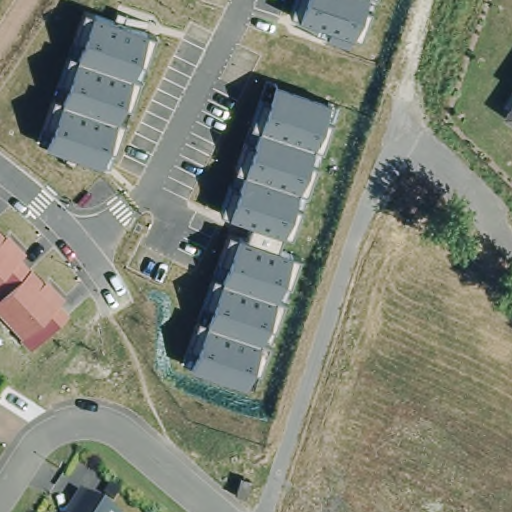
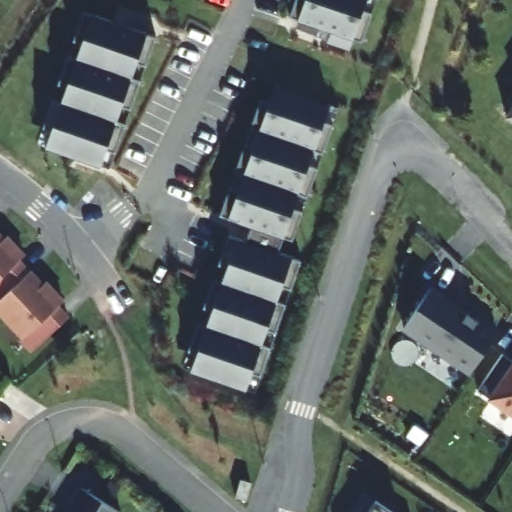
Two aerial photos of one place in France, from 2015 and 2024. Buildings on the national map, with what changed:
unchanged [(289,11),(291,0),(372,0),(360,38),(351,34),(347,46),(327,42),(332,28),(289,11)]
unchanged [(47,142),(51,126),(37,122),(81,8),(153,35),(105,167),(47,142)]
unchanged [(283,235),(277,252),(297,259),(253,388),(190,367),(194,355),(185,352),(224,235),(242,241),(248,222),(217,209),(254,100),(262,103),(269,83),(331,106),(283,235)]
unchanged [(512,111),(512,121),(507,117),(512,111)]
unchanged [(28,349),(0,315),(0,233),(6,229),(27,254),(19,261),(37,280),(45,276),(65,297),(56,303),(67,318),(28,349)]
new [(404,329),(432,285),(498,330),(468,374),(404,329)]
new [(512,414),(487,398),(490,394),(480,389),(504,353),(512,358),(512,414)]
unchanged [(71,512),(75,505),(72,502),(82,487),(121,512),(71,512)]
new [(394,512),(368,512),(376,499),(394,512)]

